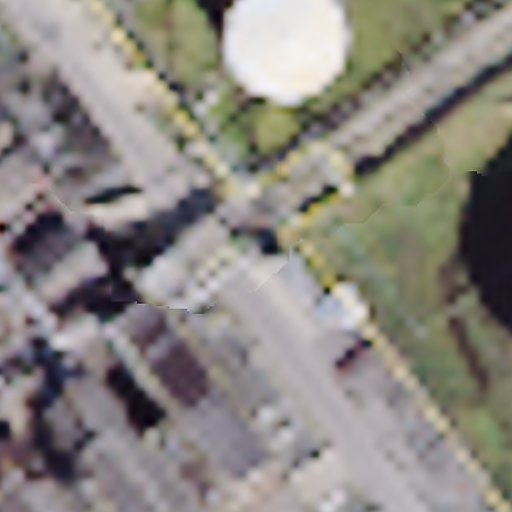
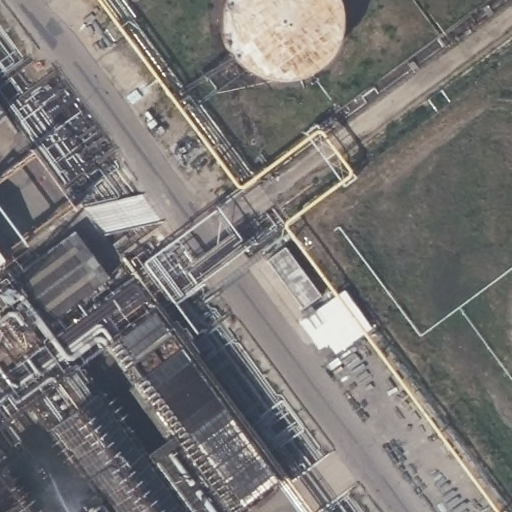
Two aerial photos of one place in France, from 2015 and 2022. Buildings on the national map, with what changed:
unchanged [(0,115),(0,113),(1,114),(0,115)]
unchanged [(74,241),(109,288),(50,333),(14,285),(74,241)]
unchanged [(303,306),(268,259),(287,245),(320,292),(303,306)]
unchanged [(2,272),(0,274),(0,269),(2,272)]
unchanged [(152,321),(277,490),(246,512),(233,512),(113,350),(152,321)]
unchanged [(428,405),(414,416),(432,440),(422,447),(382,394),(407,376),(428,405)]
unchanged [(95,405),(175,512),(107,512),(52,436),(95,405)]
unchanged [(19,463),(55,512),(0,512),(0,477),(19,463)]
unchanged [(92,505),(98,512),(83,512),(92,505)]

